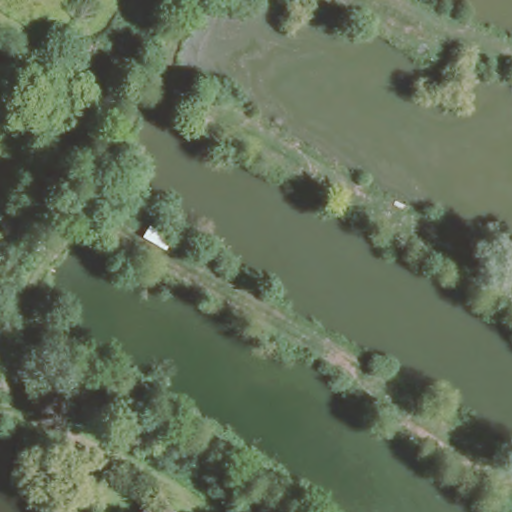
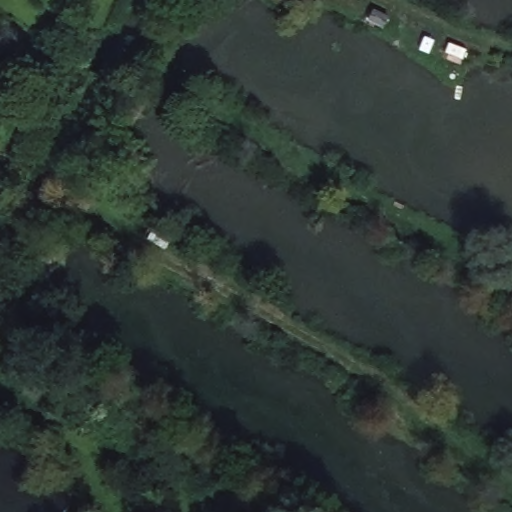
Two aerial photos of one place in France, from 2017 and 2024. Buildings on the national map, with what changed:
unchanged [(137,512),(150,496),(168,511),(167,512),(137,512)]

